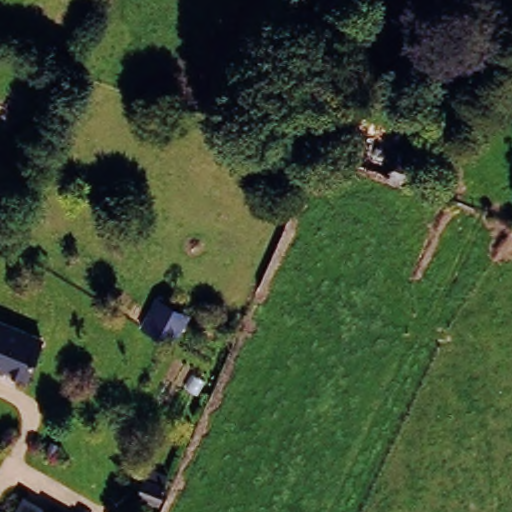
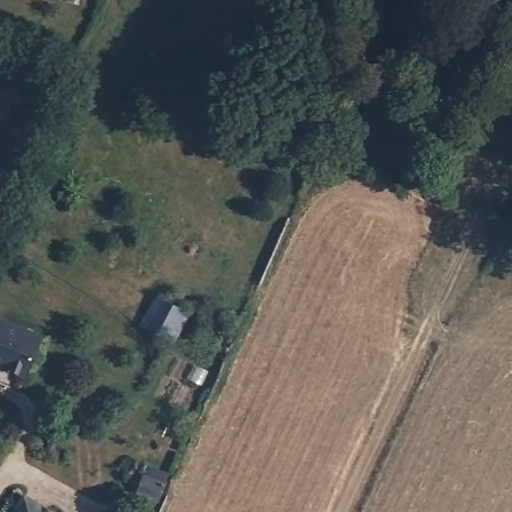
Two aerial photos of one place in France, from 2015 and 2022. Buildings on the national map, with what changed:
unchanged [(320,146),(320,145),(330,122),(407,154),(398,176),(397,177),(320,146)]
unchanged [(190,309),(172,341),(140,324),(157,293),(190,309)]
unchanged [(35,341),(20,380),(0,373),(0,327),(35,341)]
unchanged [(136,493),(143,476),(147,466),(165,473),(161,483),(163,485),(157,501),(136,493)]
unchanged [(18,496),(45,512),(8,512),(18,496)]

